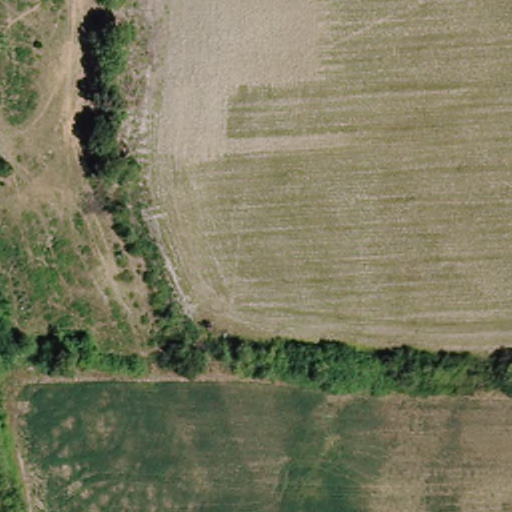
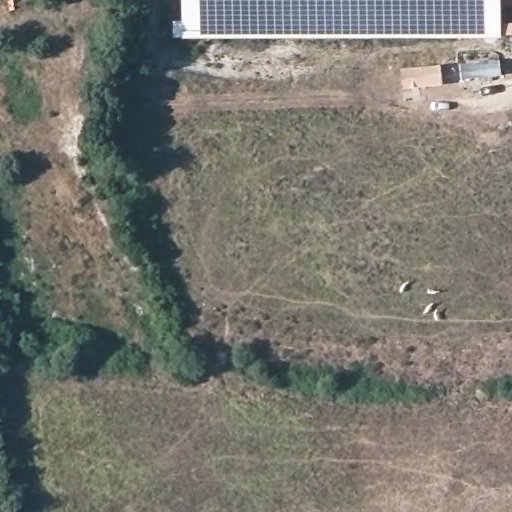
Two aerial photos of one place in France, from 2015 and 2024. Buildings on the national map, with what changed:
new [(502,39),(183,39),(183,0),(502,0),(502,39)]

